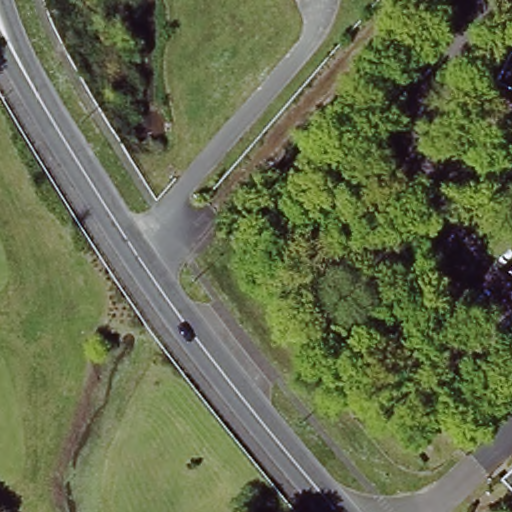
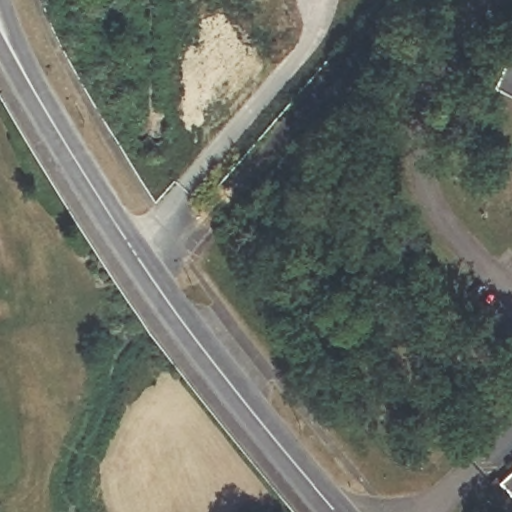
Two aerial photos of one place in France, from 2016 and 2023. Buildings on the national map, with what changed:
unchanged [(509,50),(512,52),(512,90),(495,83),(509,50)]
unchanged [(512,478),(512,491),(506,484),(512,478)]

